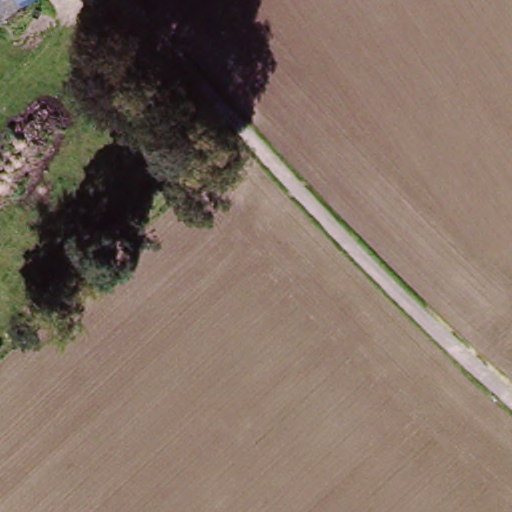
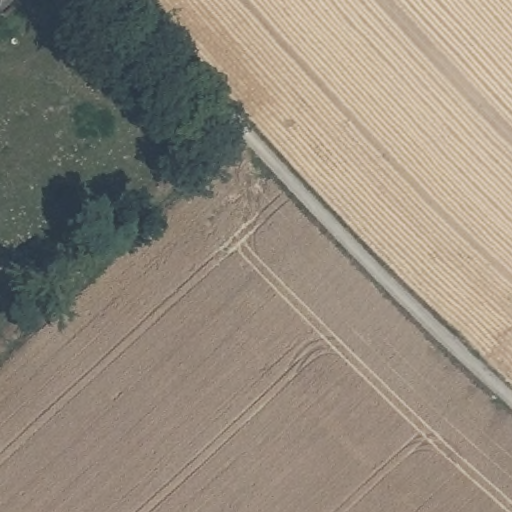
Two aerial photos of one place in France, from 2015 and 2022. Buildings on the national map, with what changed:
unchanged [(14,0),(35,0),(22,11),(14,0)]

